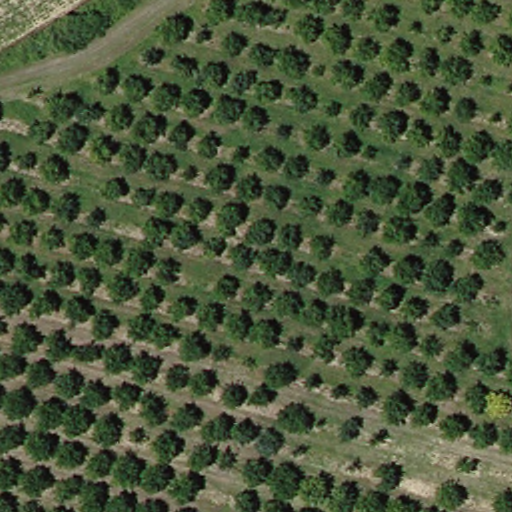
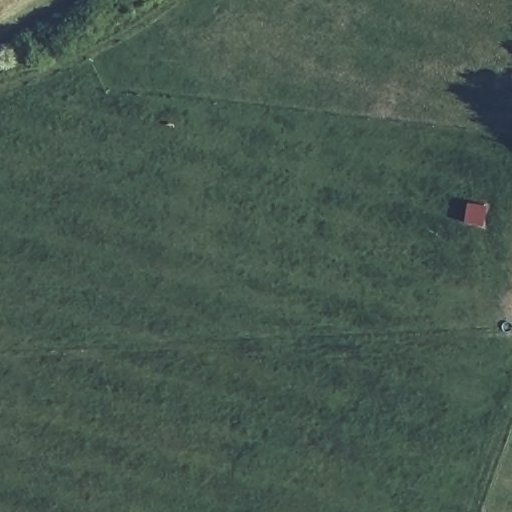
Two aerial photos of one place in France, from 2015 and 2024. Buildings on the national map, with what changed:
[]

